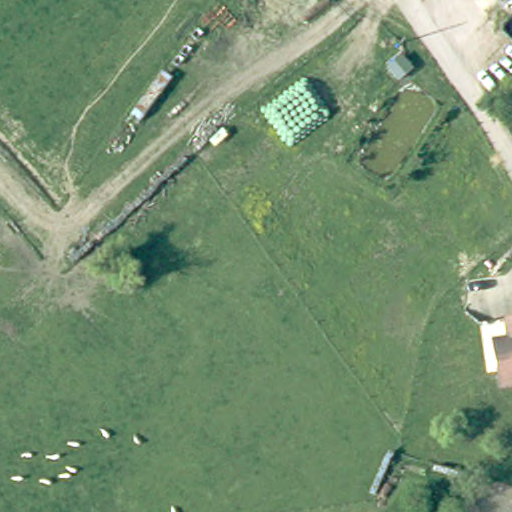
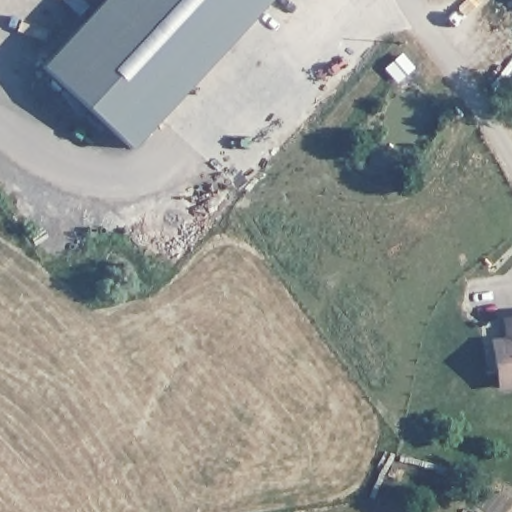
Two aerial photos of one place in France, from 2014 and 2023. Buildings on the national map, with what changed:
new [(131,149),(41,66),(102,0),(269,0),(131,149)]
unchanged [(512,324),(512,390),(496,392),(491,364),(489,350),(506,347),(503,325),(512,324)]

